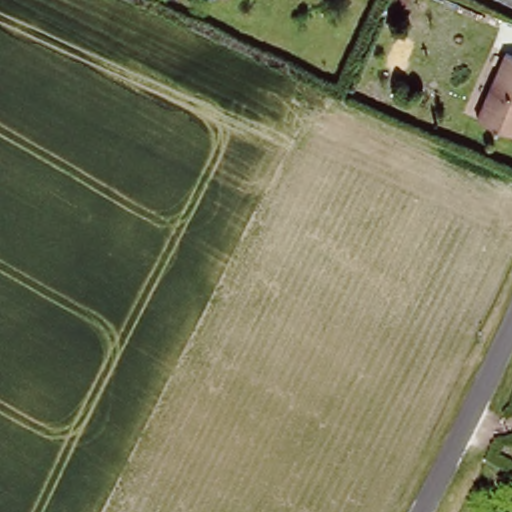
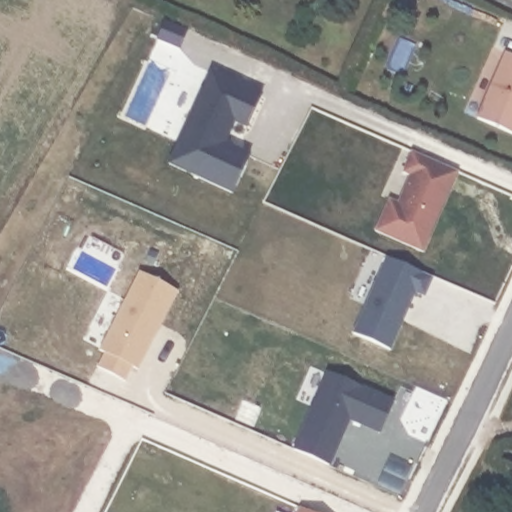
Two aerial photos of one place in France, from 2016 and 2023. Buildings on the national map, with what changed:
new [(163,25),(185,35),(178,52),(155,43),(163,25)]
unchanged [(512,131),(477,116),(507,51),(512,54),(512,131)]
new [(210,75),(260,98),(246,130),(233,124),(223,146),(249,158),(233,196),(168,166),(210,75)]
new [(425,254),(375,231),(390,199),(398,204),(411,177),(403,173),(413,151),(461,172),(425,254)]
new [(427,299),(417,294),(392,351),(353,335),(387,257),(436,278),(427,299)]
new [(105,356),(100,353),(139,274),(178,294),(161,327),(158,325),(153,335),(156,337),(138,373),(132,369),(125,384),(97,369),(105,356)]
new [(383,436),(351,423),(332,469),(295,454),(330,372),(399,401),(383,436)]
new [(300,506),(314,512),(297,512),(300,506)]

